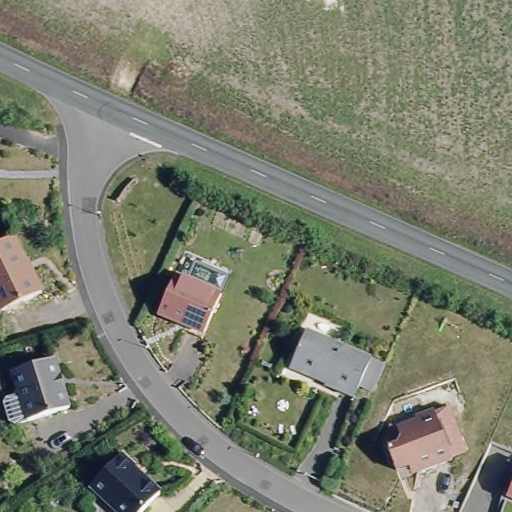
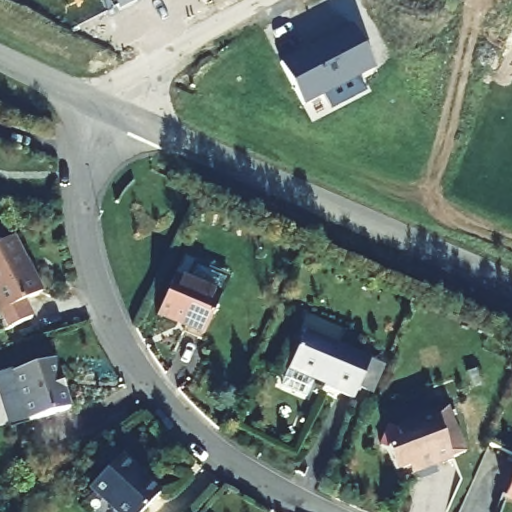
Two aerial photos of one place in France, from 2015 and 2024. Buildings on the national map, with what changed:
new [(136,0),(137,1),(118,9),(113,0),(136,0)]
new [(359,80),(366,91),(333,109),(326,98),(304,108),(280,63),(352,24),(377,71),(359,80)]
unchanged [(32,268),(28,270),(38,294),(5,310),(0,300),(0,241),(13,234),(32,268)]
unchanged [(225,292),(206,333),(158,309),(176,269),(225,292)]
unchanged [(376,356),(358,391),(331,378),(333,373),(294,356),(309,324),(376,356)]
unchanged [(73,409),(29,420),(16,368),(59,358),(73,409)]
unchanged [(404,464),(398,445),(404,443),(398,423),(442,409),(456,459),(419,469),(416,461),(404,464)]
unchanged [(139,460),(133,467),(162,491),(143,512),(117,512),(86,485),(123,446),(139,460)]

